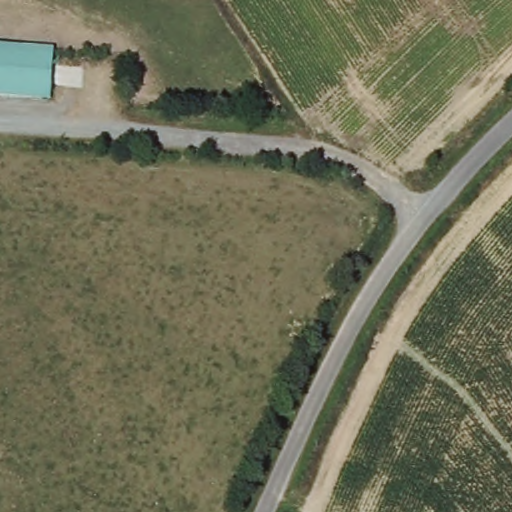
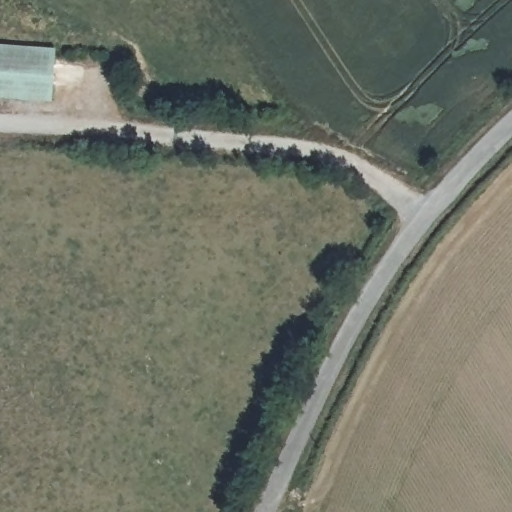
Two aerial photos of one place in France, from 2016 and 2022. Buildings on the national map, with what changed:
unchanged [(56,46),(47,104),(0,100),(0,42),(56,46)]

